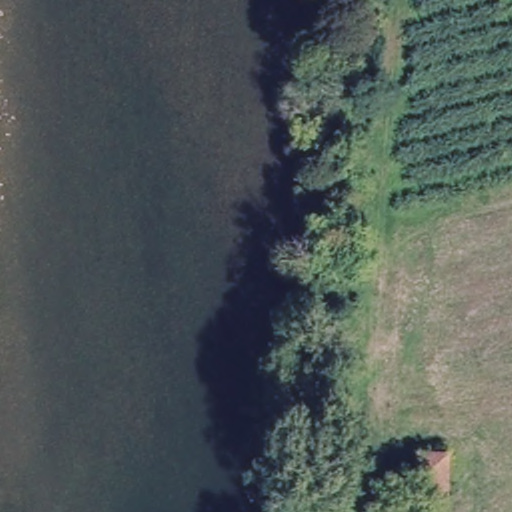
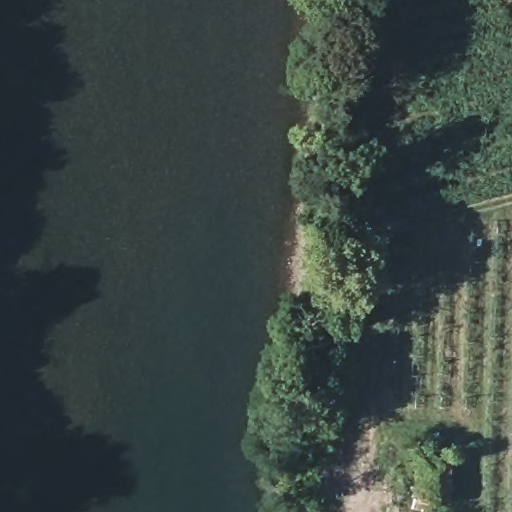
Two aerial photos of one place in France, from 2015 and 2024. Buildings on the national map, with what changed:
unchanged [(448,502),(414,500),(417,463),(451,463),(448,502)]

